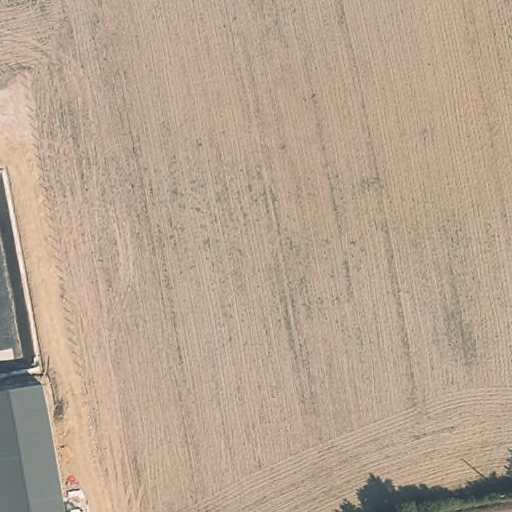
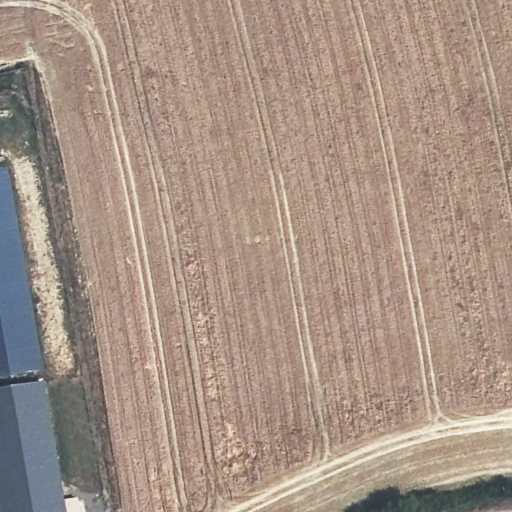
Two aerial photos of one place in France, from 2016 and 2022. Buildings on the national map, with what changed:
new [(44,371),(0,380),(0,169),(9,167),(44,371)]
unchanged [(65,512),(0,512),(0,392),(45,385),(65,512)]

